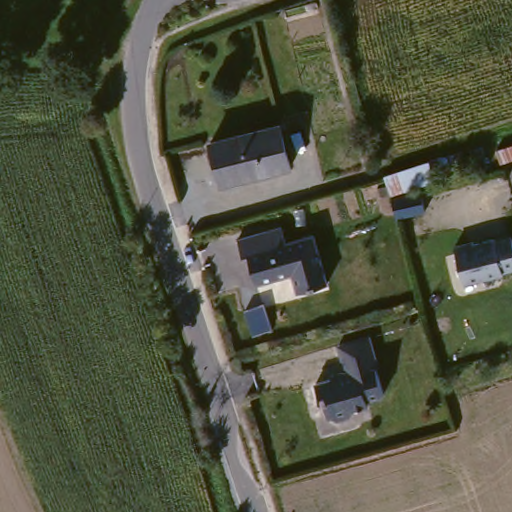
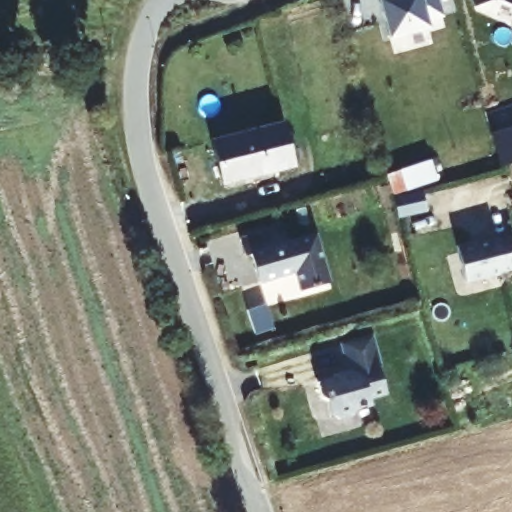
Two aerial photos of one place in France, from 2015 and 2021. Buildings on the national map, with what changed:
new [(442,16),(427,20),(428,27),(390,38),(379,0),(437,0),(442,16)]
new [(473,7),(471,0),(492,0),(473,7)]
new [(497,0),(512,0),(512,7),(497,0)]
unchanged [(282,124),(292,166),(222,184),(212,142),(282,124)]
unchanged [(430,161),(436,179),(392,193),(386,175),(430,161)]
unchanged [(282,227),(287,244),(315,236),(328,284),(300,292),(294,273),(257,283),(250,255),(244,257),(239,239),(282,227)]
unchanged [(476,249),(477,252),(497,245),(497,247),(512,242),(512,271),(506,272),(506,273),(468,287),(457,255),(476,249)]
unchanged [(328,417),(326,417),(322,402),(317,400),(313,384),(330,379),(328,376),(343,372),(336,346),(367,337),(376,368),(373,368),(381,395),(364,400),(366,406),(352,410),(348,416),(334,420),(328,417)]

